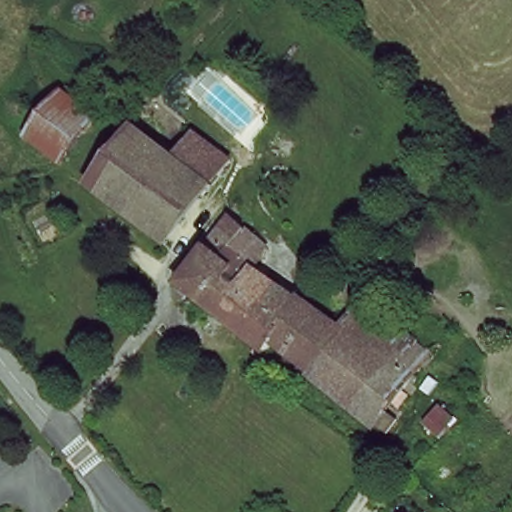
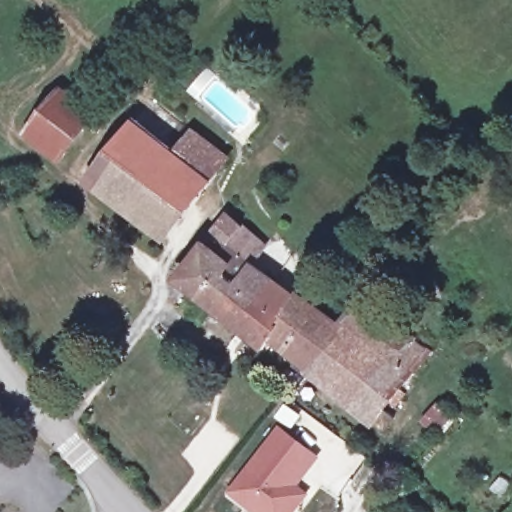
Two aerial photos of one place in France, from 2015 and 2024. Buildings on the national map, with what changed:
unchanged [(56,161),(27,136),(62,91),(94,115),(56,161)]
unchanged [(191,132),(229,156),(209,181),(194,169),(165,203),(99,156),(130,116),(172,151),(191,132)]
unchanged [(160,243),(80,179),(99,156),(165,203),(194,169),(209,181),(160,243)]
unchanged [(164,280),(211,213),(260,241),(242,269),(293,299),(256,348),(253,352),(164,280)]
unchanged [(337,325),(364,301),(432,359),(368,431),(256,348),(293,299),(324,318),(337,325)]
new [(239,480),(278,428),(310,452),(317,456),(294,487),(306,495),(294,512),(252,512),(246,508),(228,495),(239,480)]

